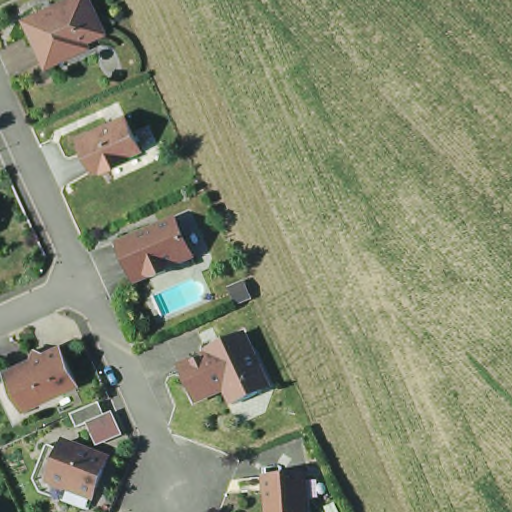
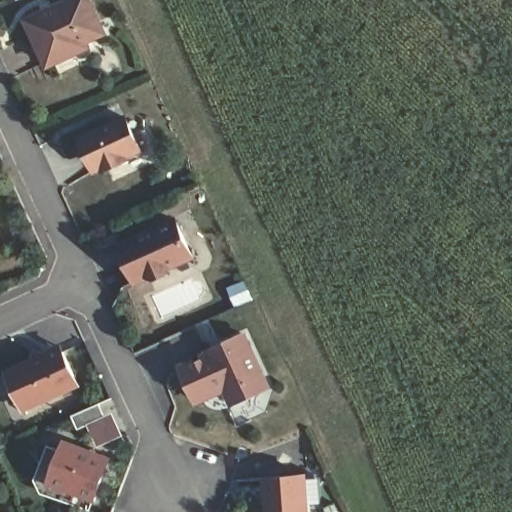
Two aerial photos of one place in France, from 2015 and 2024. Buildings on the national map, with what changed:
unchanged [(82,0),(86,0),(102,36),(87,45),(89,50),(49,68),(30,24),(82,0)]
unchanged [(127,123),(141,155),(104,174),(86,142),(127,123)]
unchanged [(164,267),(165,271),(150,278),(145,274),(131,279),(116,246),(145,230),(147,234),(172,221),(186,255),(164,267)]
unchanged [(255,391),(230,404),(220,387),(190,400),(176,370),(205,357),(202,350),(215,345),(237,335),(247,355),(262,388),(255,391)]
unchanged [(37,356),(40,346),(52,349),(65,343),(80,378),(65,386),(35,400),(14,367),(37,356)]
unchanged [(65,386),(68,395),(20,417),(0,376),(0,373),(14,367),(35,400),(65,386)]
unchanged [(105,414),(78,427),(71,413),(100,401),(105,414)]
unchanged [(93,497),(80,491),(81,488),(72,484),(64,490),(54,485),(50,479),(63,444),(94,455),(92,458),(107,465),(93,497)]
unchanged [(302,474),(303,512),(268,512),(266,476),(302,474)]

